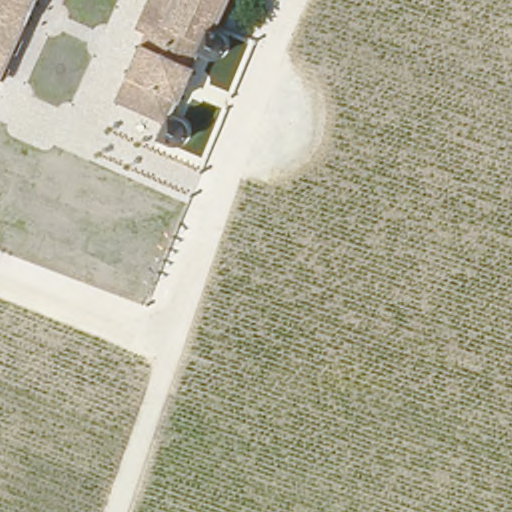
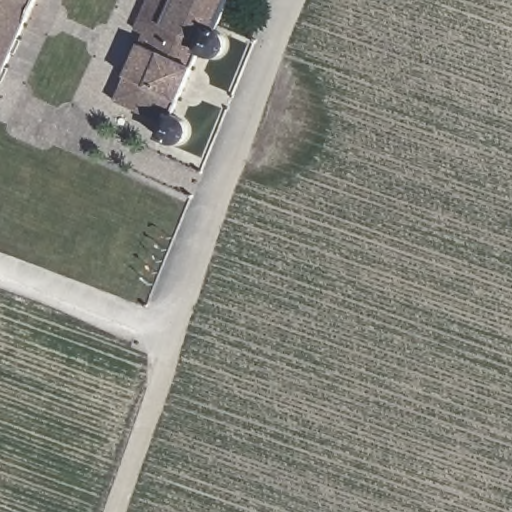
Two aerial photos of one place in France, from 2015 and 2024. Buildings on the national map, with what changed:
unchanged [(37,0),(0,82),(0,0),(37,0)]
unchanged [(149,0),(170,0),(160,22),(199,37),(203,29),(208,31),(224,39),(226,46),(224,55),(220,59),(213,60),(205,56),(178,119),(188,126),(190,132),(188,140),(182,144),(169,143),(160,138),(166,126),(118,104),(145,42),(133,35),(149,0)]
unchanged [(203,29),(199,37),(160,22),(170,0),(222,0),(208,31),(203,29)]

